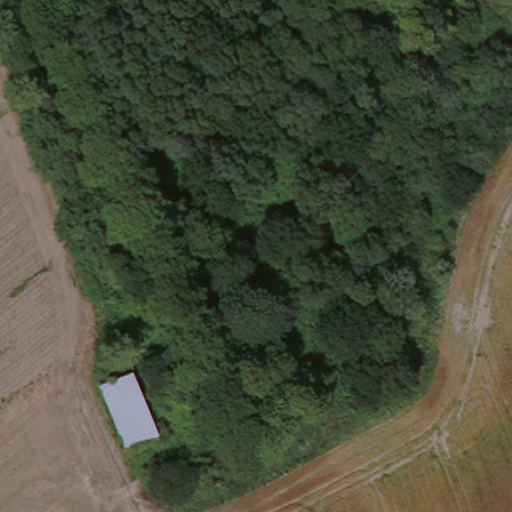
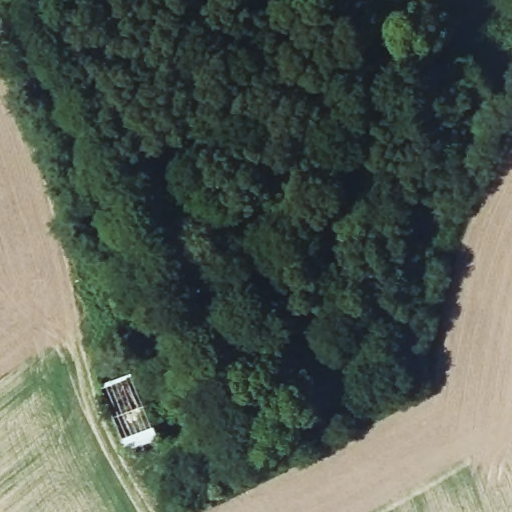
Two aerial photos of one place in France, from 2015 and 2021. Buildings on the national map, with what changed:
unchanged [(154,443),(124,455),(95,388),(128,374),(154,443)]

